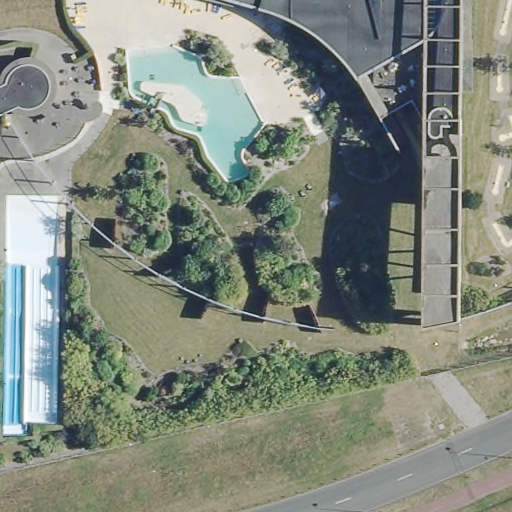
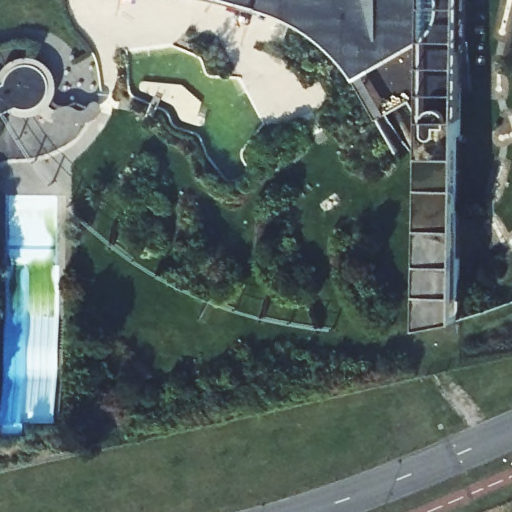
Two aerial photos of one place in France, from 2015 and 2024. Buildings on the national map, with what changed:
unchanged [(462,49),(459,154),(458,317),(422,324),(423,156),(424,123),(411,100),(391,110),(388,113),(380,116),(356,77),(337,53),(324,41),(307,28),(293,19),(279,14),(259,8),(232,0),(471,0),(471,49),(462,49)]
unchanged [(13,61),(24,57),(34,58),(45,63),(53,71),(56,83),(56,92),(53,103),(49,109),(43,114),(33,116),(23,118),(13,115),(7,110),(0,114),(0,75),(5,68),(13,61)]

